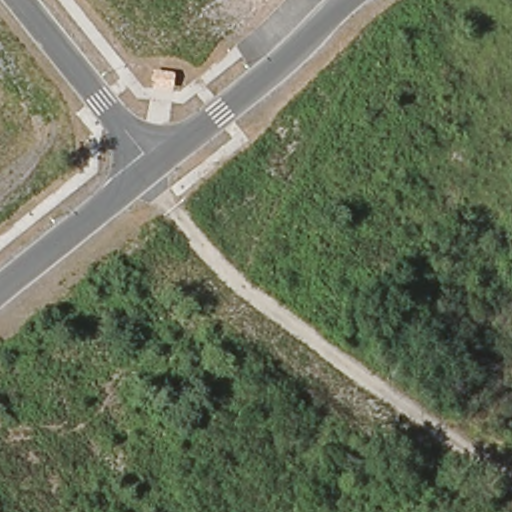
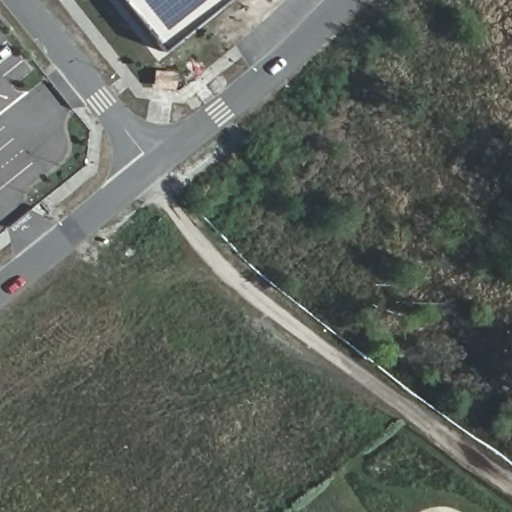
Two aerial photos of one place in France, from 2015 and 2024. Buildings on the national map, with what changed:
new [(161,50),(121,0),(224,0),(161,50)]

